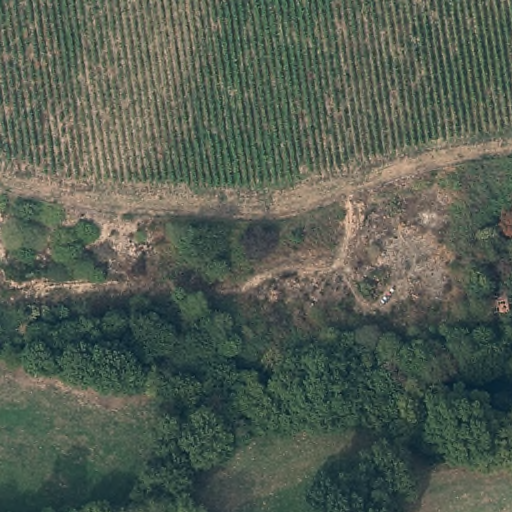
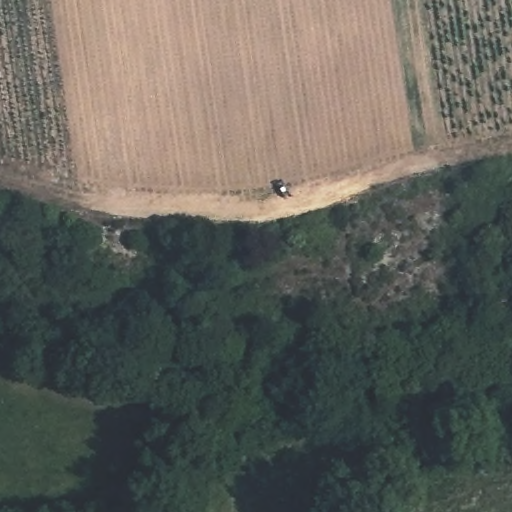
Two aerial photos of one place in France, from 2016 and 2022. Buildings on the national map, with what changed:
unchanged [(507,287),(508,311),(487,312),(487,291),(507,287)]

